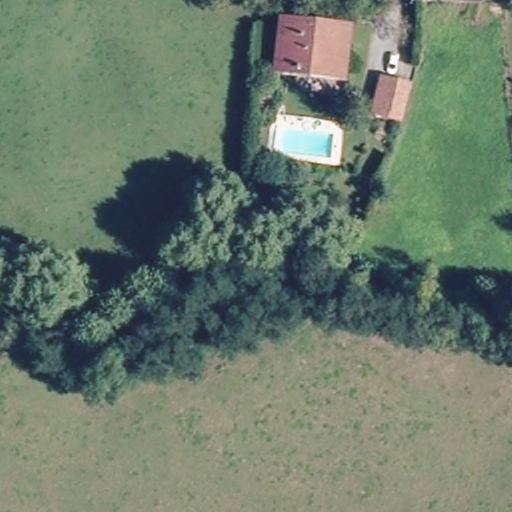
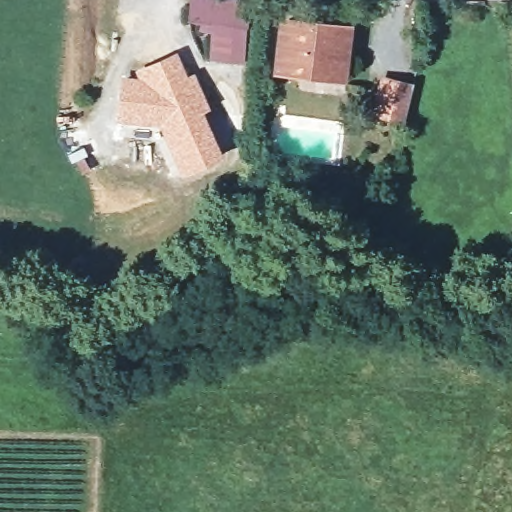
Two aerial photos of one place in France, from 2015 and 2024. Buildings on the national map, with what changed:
new [(190,0),(248,0),(243,62),(208,57),(210,33),(198,31),(199,22),(188,21),(190,0)]
unchanged [(337,72),(279,67),(284,21),(343,26),(337,72)]
new [(138,78),(134,71),(178,52),(187,75),(194,72),(211,109),(204,112),(224,157),(182,177),(160,125),(117,120),(123,75),(138,78)]
unchanged [(397,121),(373,109),(386,77),(409,87),(397,121)]

